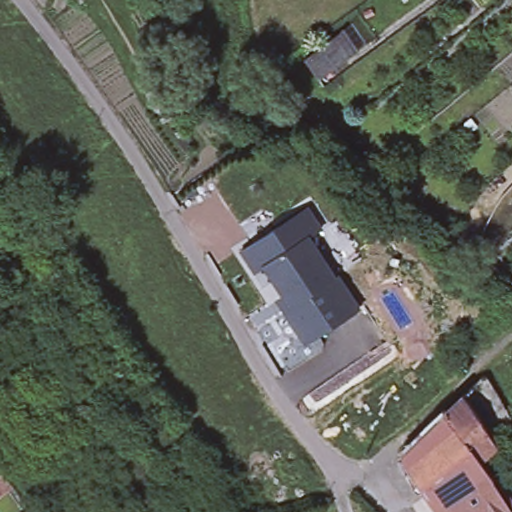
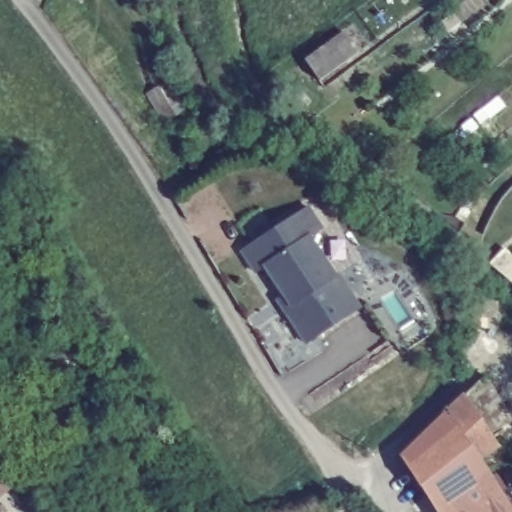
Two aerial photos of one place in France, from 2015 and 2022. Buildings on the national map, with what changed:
unchanged [(368,54),(319,83),(301,62),(346,31),(368,54)]
unchanged [(324,227),(313,234),(338,274),(341,272),(363,306),(309,341),(286,307),(293,302),(267,263),(258,269),(244,248),(260,237),(263,242),(274,234),(271,230),(311,204),(324,227)]
unchanged [(484,378),(512,418),(493,431),(466,391),(484,378)]
unchanged [(466,391),(493,431),(499,440),(480,455),(447,409),(466,391)]
unchanged [(447,409),(480,455),(494,477),(444,511),(404,453),(447,409)]
unchanged [(512,491),(512,505),(494,477),(499,472),(512,491)]
unchanged [(512,508),(506,512),(444,512),(444,511),(494,477),(512,505),(512,508)]
unchanged [(512,512),(506,512),(512,508),(512,512)]

